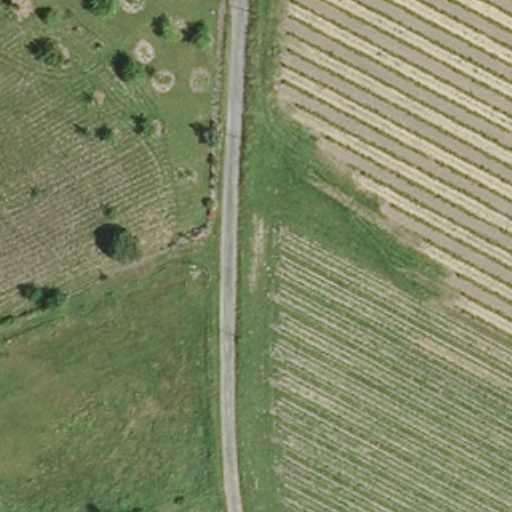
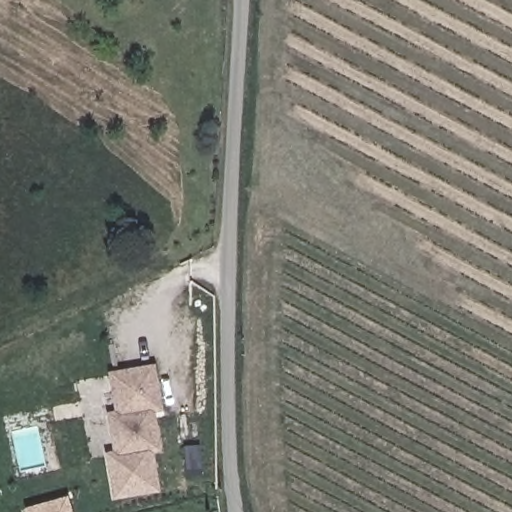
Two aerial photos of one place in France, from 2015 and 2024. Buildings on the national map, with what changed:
new [(159,491),(112,499),(104,452),(112,451),(105,411),(114,410),(107,372),(153,364),(163,409),(155,412),(161,450),(152,452),(159,491)]

